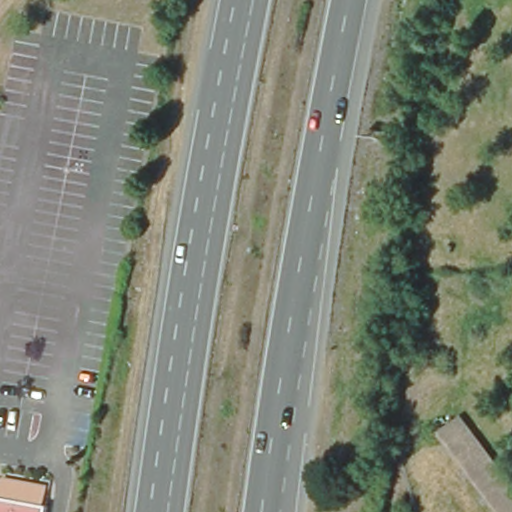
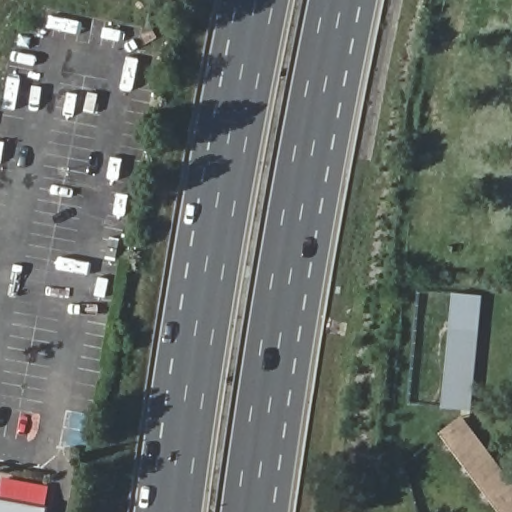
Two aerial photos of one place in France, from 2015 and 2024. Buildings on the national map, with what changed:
new [(440,407),(451,292),(482,295),(472,409),(440,407)]
unchanged [(512,492),(512,512),(482,512),(429,442),(457,420),(512,492)]
unchanged [(0,512),(0,492),(2,492),(55,502),(53,512),(0,512)]

